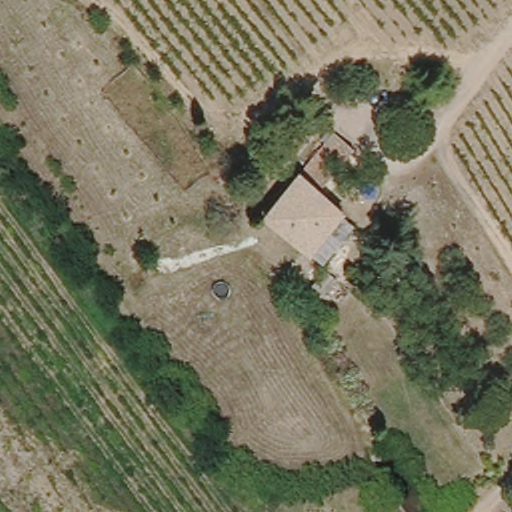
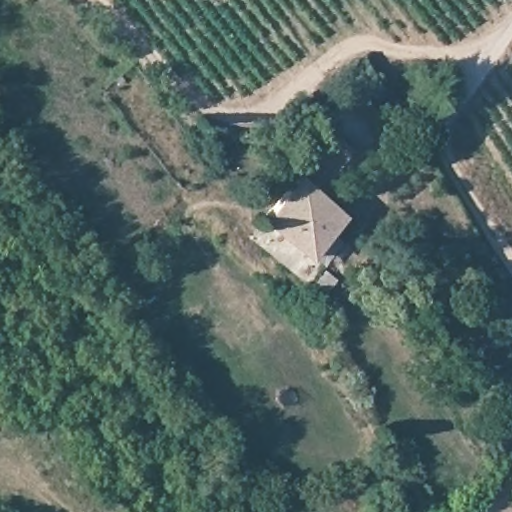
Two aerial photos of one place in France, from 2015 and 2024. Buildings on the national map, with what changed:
unchanged [(308,259),(261,218),(296,175),(311,156),(333,174),(318,193),(345,214),(308,259)]

